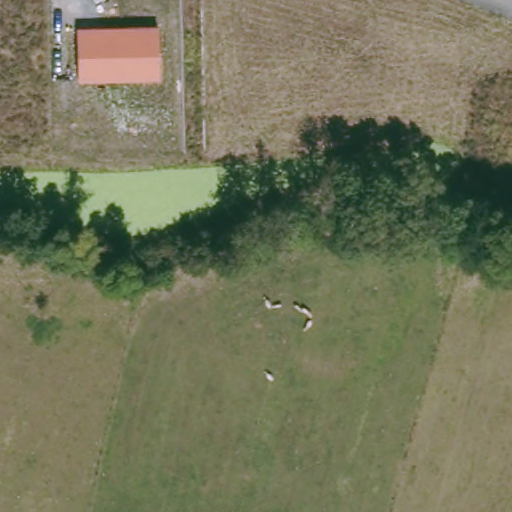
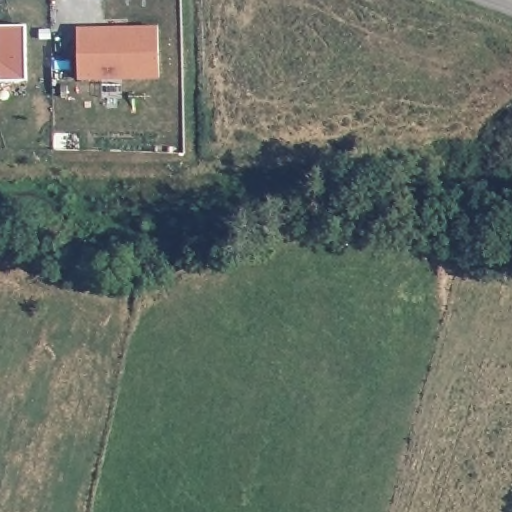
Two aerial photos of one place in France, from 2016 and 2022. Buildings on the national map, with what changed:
new [(25,24),(26,83),(0,83),(0,24),(25,24)]
unchanged [(77,25),(158,24),(158,79),(77,79),(77,25)]

